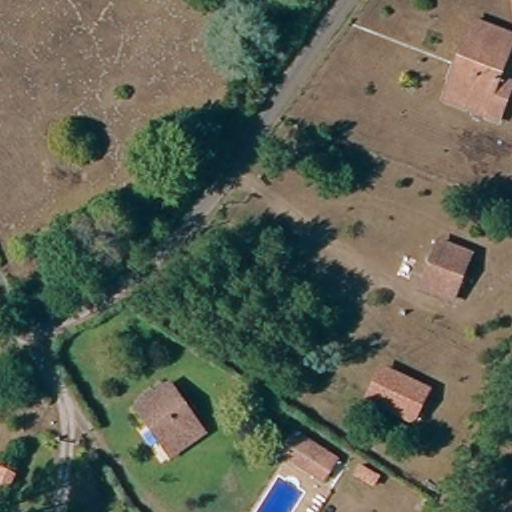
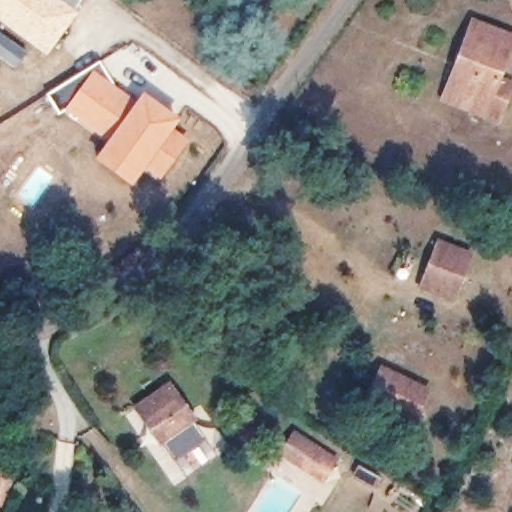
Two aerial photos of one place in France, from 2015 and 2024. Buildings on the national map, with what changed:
new [(79,0),(82,2),(47,49),(0,15),(0,0),(79,0)]
unchanged [(453,59),(468,20),(511,36),(494,75),(510,81),(495,122),(480,116),(437,100),(453,59)]
new [(25,52),(16,67),(0,56),(0,34),(25,52)]
new [(139,101),(143,94),(178,120),(170,127),(189,141),(161,177),(145,166),(131,185),(96,161),(109,142),(67,109),(62,112),(49,94),(101,62),(114,84),(139,101)]
unchanged [(461,256),(441,301),(410,289),(428,244),(461,256)]
unchanged [(385,367),(430,389),(415,418),(370,396),(385,367)]
unchanged [(160,447),(134,412),(169,386),(202,433),(190,441),(167,457),(160,447)]
unchanged [(272,455),(283,440),(324,466),(313,481),(272,455)]
unchanged [(353,468),(371,480),(366,488),(347,477),(353,468)]

